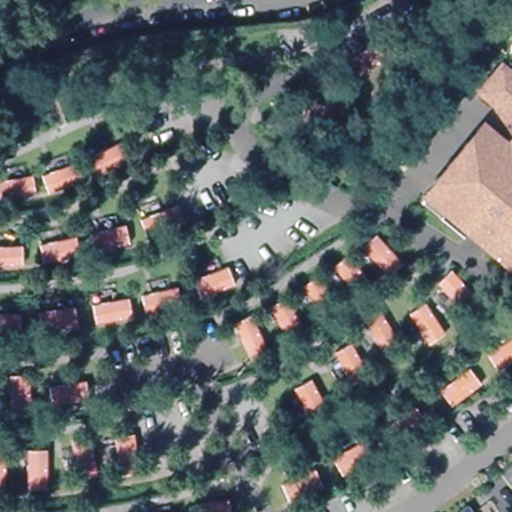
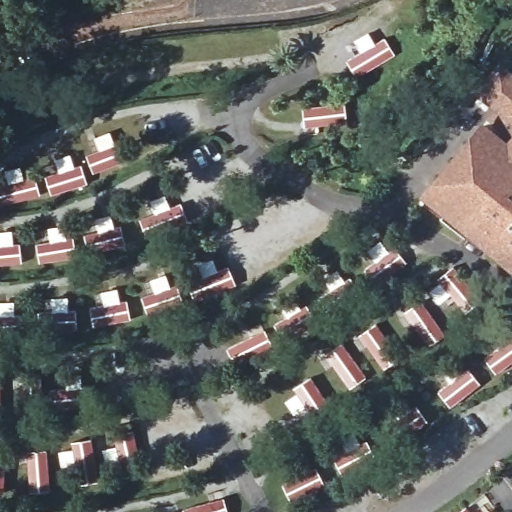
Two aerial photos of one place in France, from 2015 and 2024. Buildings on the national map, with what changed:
unchanged [(492,115),(503,102),(487,89),(485,86),(493,76),(503,65),(512,72),(512,133),(492,115)]
unchanged [(512,144),(512,262),(472,225),(465,232),(432,202),(422,194),(487,122),(512,144)]

